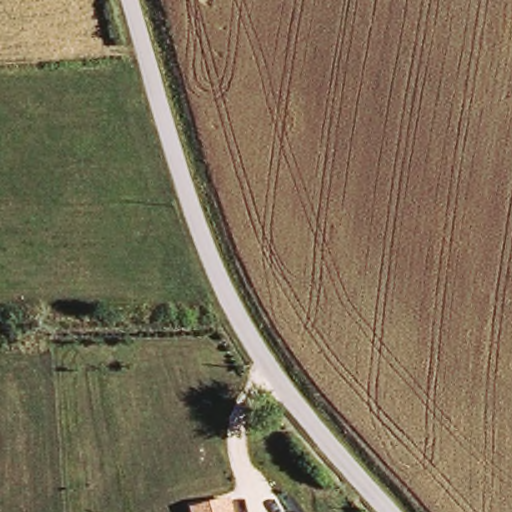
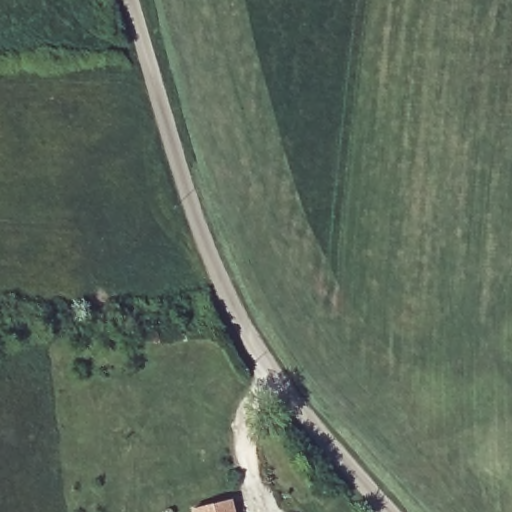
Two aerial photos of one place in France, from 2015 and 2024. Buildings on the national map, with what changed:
unchanged [(233,497),(237,512),(194,512),(193,507),(233,497)]

